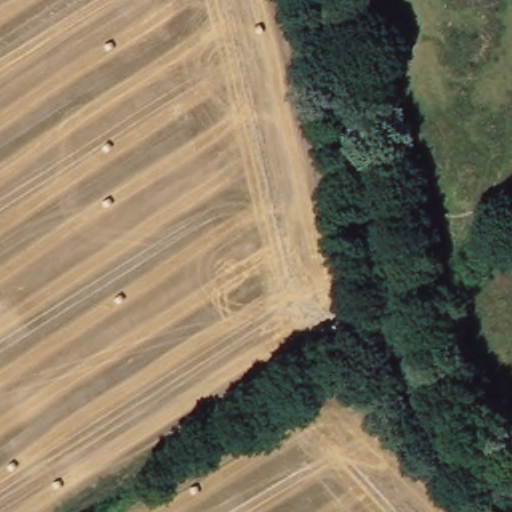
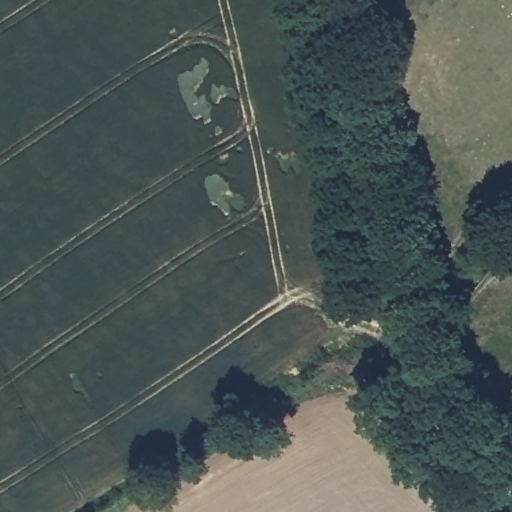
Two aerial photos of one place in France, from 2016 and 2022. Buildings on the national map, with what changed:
[]

